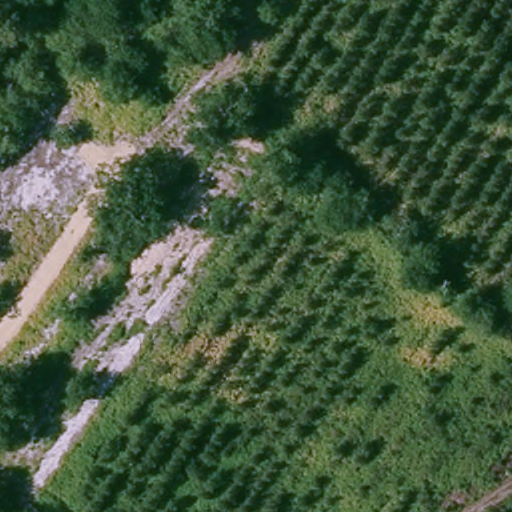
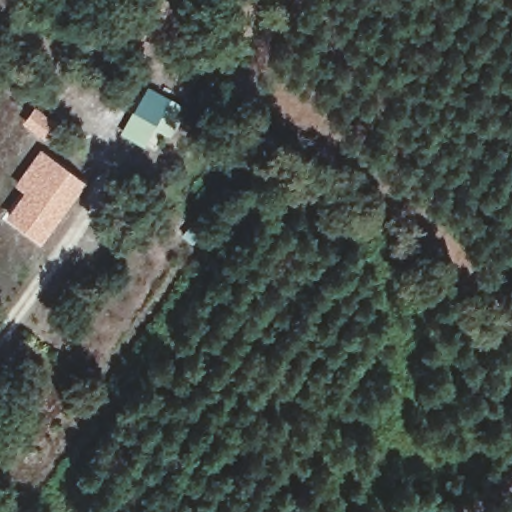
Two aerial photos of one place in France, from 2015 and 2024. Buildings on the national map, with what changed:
new [(120,135),(148,86),(172,100),(145,145),(120,135)]
new [(40,242),(6,217),(50,156),(86,183),(40,242)]

